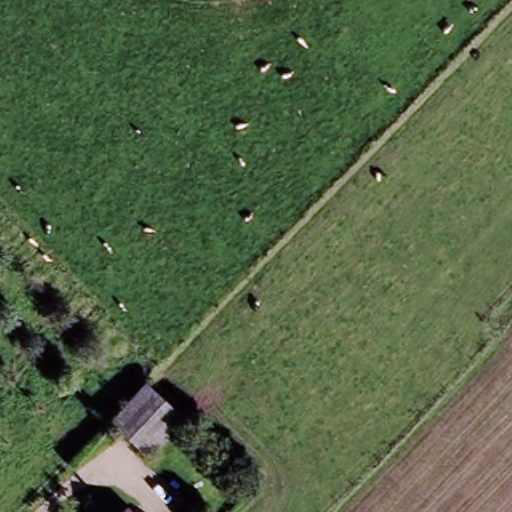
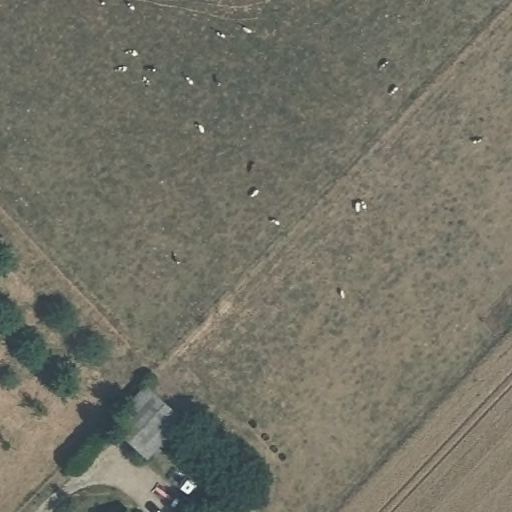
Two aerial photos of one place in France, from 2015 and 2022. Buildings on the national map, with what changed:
unchanged [(183,422),(146,463),(105,421),(142,385),(183,422)]
unchanged [(129,512),(127,512),(128,511),(129,512)]

